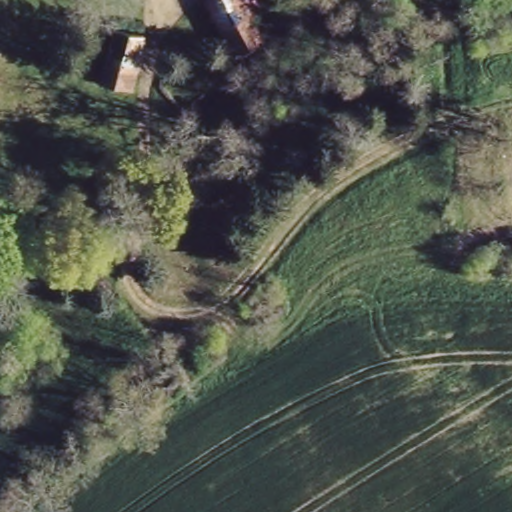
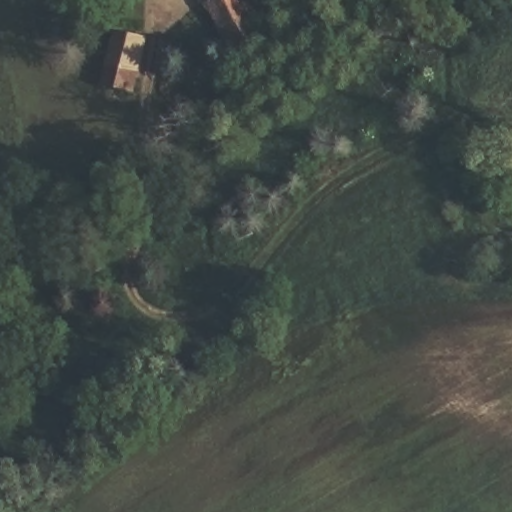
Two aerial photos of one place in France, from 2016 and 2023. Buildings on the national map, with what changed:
unchanged [(203,0),(268,0),(273,9),(251,20),(254,27),(263,49),(233,61),(221,40),(203,0)]
unchanged [(138,36),(125,91),(95,84),(108,30),(138,36)]

